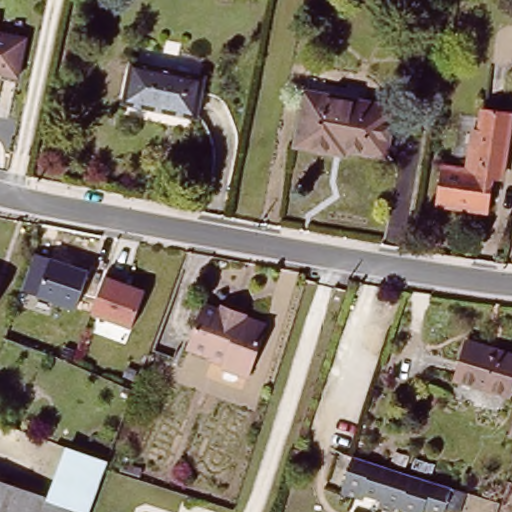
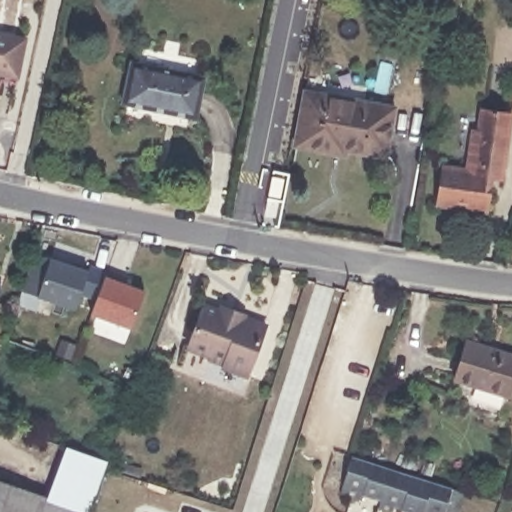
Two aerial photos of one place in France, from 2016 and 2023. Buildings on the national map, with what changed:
unchanged [(122,107),(131,65),(203,80),(195,122),(122,107)]
unchanged [(392,116),(382,160),(346,154),(345,160),(294,150),(307,85),(358,95),(356,109),(392,116)]
unchanged [(460,171),(474,108),(512,115),(512,126),(504,184),(490,184),(482,217),(420,207),(430,165),(460,171)]
unchanged [(38,295),(21,288),(33,251),(51,258),(92,271),(78,310),(38,295)]
unchanged [(146,285),(132,329),(92,316),(105,271),(146,285)]
unchanged [(240,382),(219,373),(221,368),(185,353),(201,311),(216,317),(217,312),(240,321),(239,324),(260,333),(240,382)]
unchanged [(455,383),(466,346),(512,360),(512,390),(509,399),(455,383)]
unchanged [(64,450),(98,464),(81,512),(70,512),(44,502),(64,450)]
unchanged [(470,497),(465,512),(401,512),(384,512),(386,507),(367,500),(366,508),(344,502),(357,463),(470,497)]
unchanged [(44,502),(70,512),(0,512),(0,486),(14,491),(44,502)]

